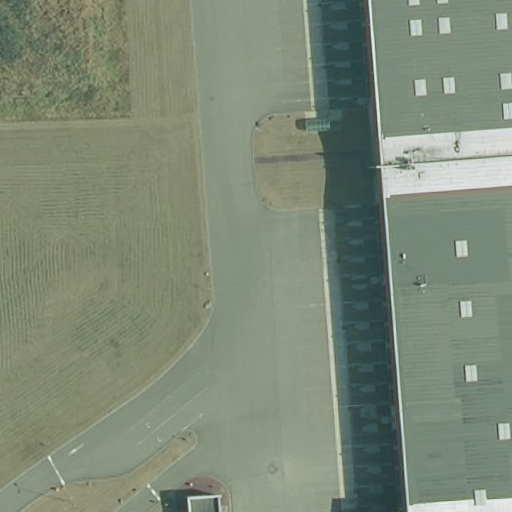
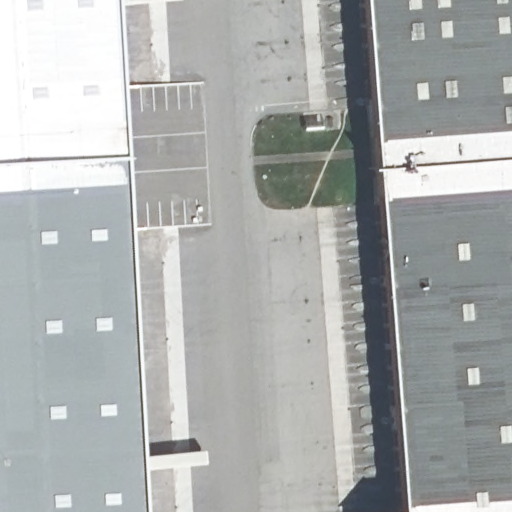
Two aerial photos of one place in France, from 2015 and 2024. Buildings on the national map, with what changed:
new [(119,153),(0,159),(0,0),(110,0),(119,153)]
unchanged [(358,0),(512,0),(512,512),(398,512),(366,109),(358,0)]
new [(139,512),(0,512),(0,159),(119,153),(139,512)]
unchanged [(214,495),(215,512),(184,512),(183,497),(214,495)]

